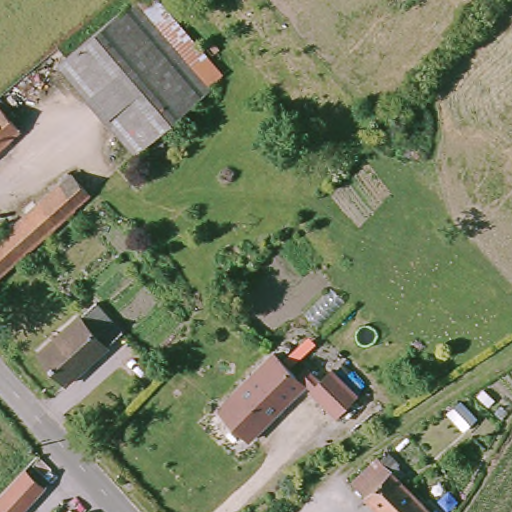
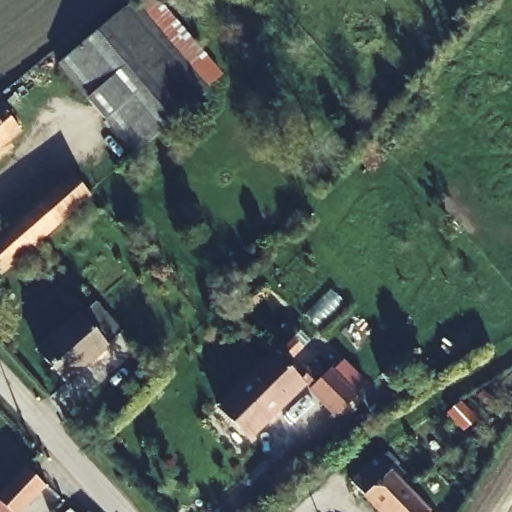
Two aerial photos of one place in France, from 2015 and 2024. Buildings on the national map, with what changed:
unchanged [(212,95),(141,156),(70,72),(49,88),(31,67),(40,59),(60,43),(71,56),(134,3),(212,95)]
unchanged [(0,144),(0,111),(16,129),(0,144)]
unchanged [(36,205),(67,179),(80,193),(86,200),(81,205),(35,246),(0,276),(0,246),(40,210),(36,205)]
unchanged [(93,298),(127,335),(70,384),(38,348),(93,298)]
unchanged [(348,388),(329,410),(298,383),(250,437),(218,409),(270,351),(291,370),(299,363),(312,375),(322,365),(348,388)]
unchanged [(345,479),(368,456),(373,460),(383,451),(392,459),(390,462),(405,478),(399,485),(426,510),(424,512),(377,512),(345,479)]
unchanged [(36,480),(1,512),(0,512),(0,478),(18,460),(36,480)]
unchanged [(64,505),(75,494),(82,502),(86,506),(80,512),(69,512),(64,505)]
unchanged [(426,510),(428,512),(424,512),(426,510)]

